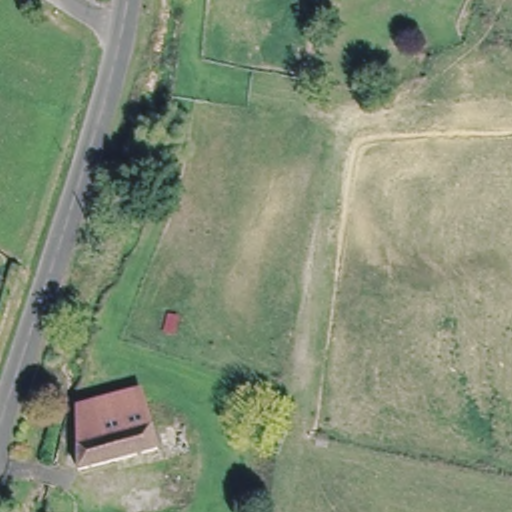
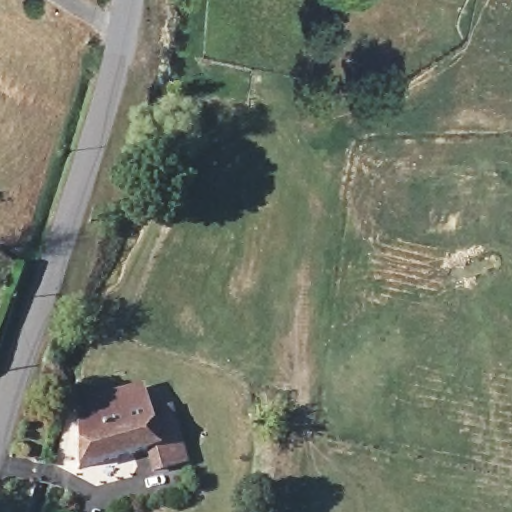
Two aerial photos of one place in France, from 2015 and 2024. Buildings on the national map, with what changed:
unchanged [(146,389),(151,421),(172,418),(176,446),(81,463),(70,401),(146,389)]

